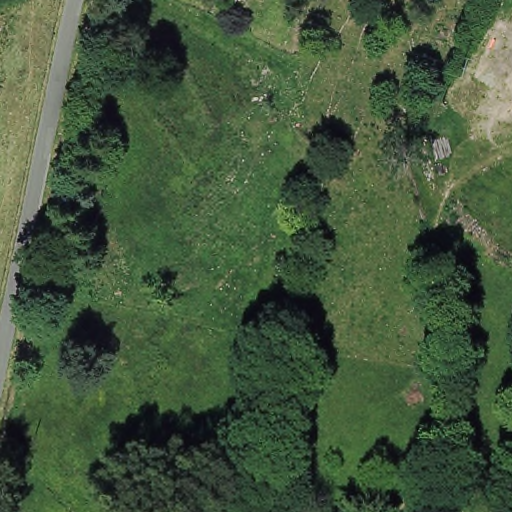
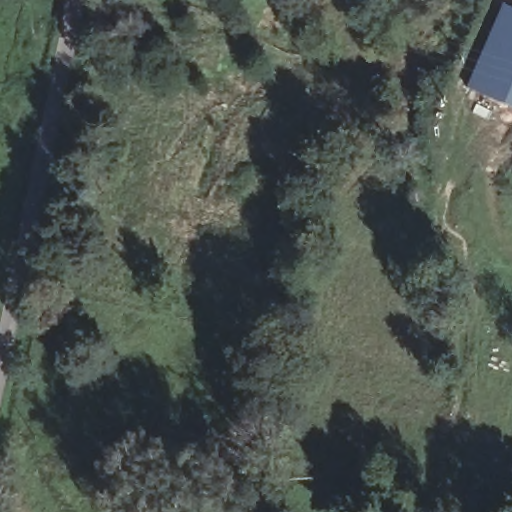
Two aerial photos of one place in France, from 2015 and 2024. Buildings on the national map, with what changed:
new [(512,13),(512,110),(465,91),(500,8),(512,13)]

